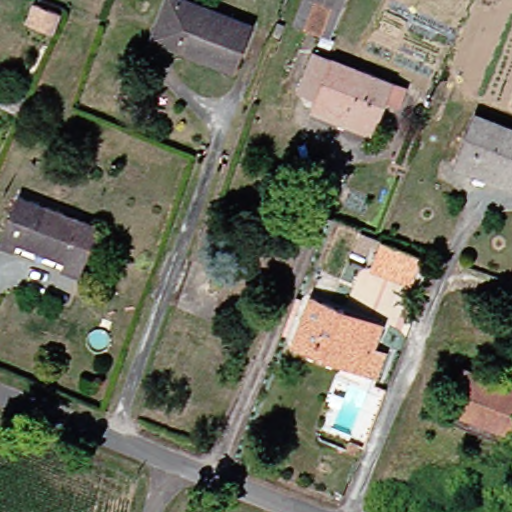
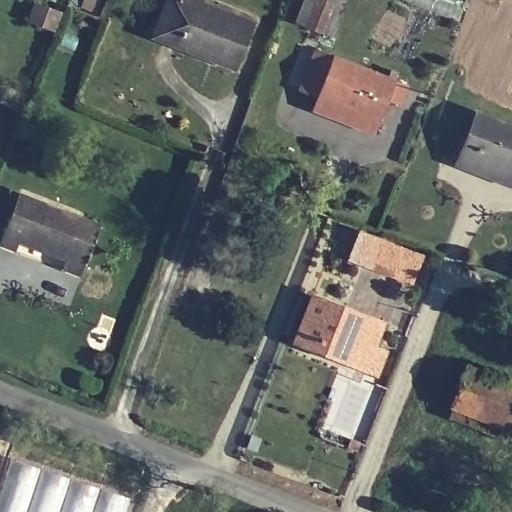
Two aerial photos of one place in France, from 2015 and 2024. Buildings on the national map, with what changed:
unchanged [(242,71),(160,38),(175,0),(181,0),(258,30),(242,71)]
unchanged [(307,14),(313,0),(344,0),(334,25),(307,14)]
unchanged [(316,112),(321,99),(300,90),(316,50),(409,86),(401,106),(390,102),(381,122),(375,135),(316,112)]
unchanged [(512,175),(484,164),(479,176),(456,167),(478,112),(512,126),(512,175)]
unchanged [(104,225),(84,276),(71,271),(74,262),(25,244),(21,254),(7,249),(27,196),(104,225)]
unchanged [(412,290),(374,275),(386,241),(425,256),(412,290)]
unchanged [(364,368),(358,367),(354,364),(296,341),(314,297),(352,311),(350,316),(383,329),(376,346),(369,365),(364,368)]
unchanged [(455,406),(470,370),(512,387),(512,433),(508,443),(449,420),(455,406)]
new [(12,460),(130,499),(126,512),(0,512),(0,497),(12,460)]

